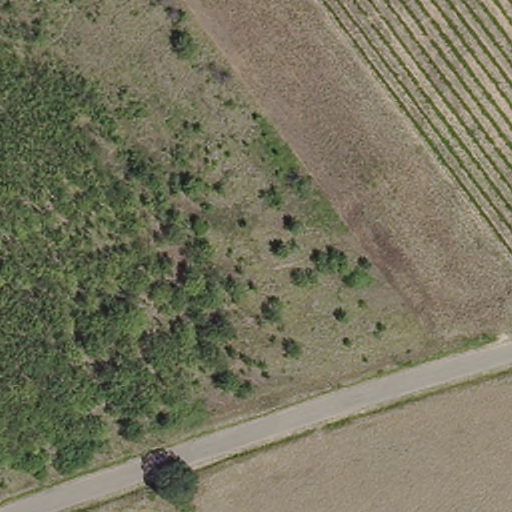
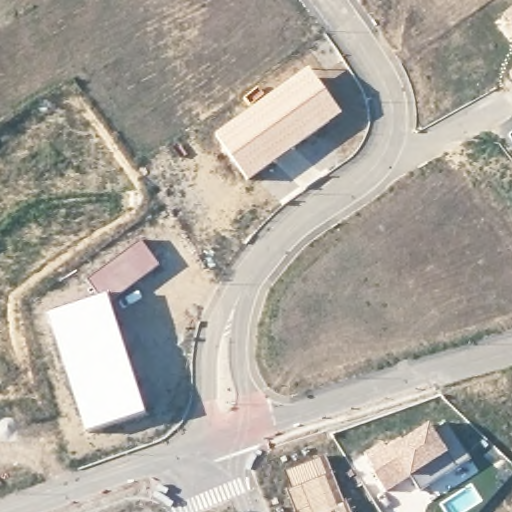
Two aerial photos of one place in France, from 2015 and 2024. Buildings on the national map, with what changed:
new [(512,9),(512,23),(505,15),(512,9)]
new [(256,103),(308,67),(343,114),(247,182),(215,134),(256,103)]
new [(512,73),(512,75),(511,74),(512,73)]
new [(141,239),(161,265),(125,291),(108,297),(107,293),(98,296),(87,278),(141,239)]
new [(98,296),(107,293),(108,297),(146,414),(85,433),(73,399),(47,314),(98,296)]
new [(447,475),(421,492),(410,478),(385,493),(363,456),(377,448),(411,433),(430,422),(435,430),(448,452),(457,467),(447,475)]
new [(325,454),(351,512),(296,512),(293,505),(282,471),(325,454)]

